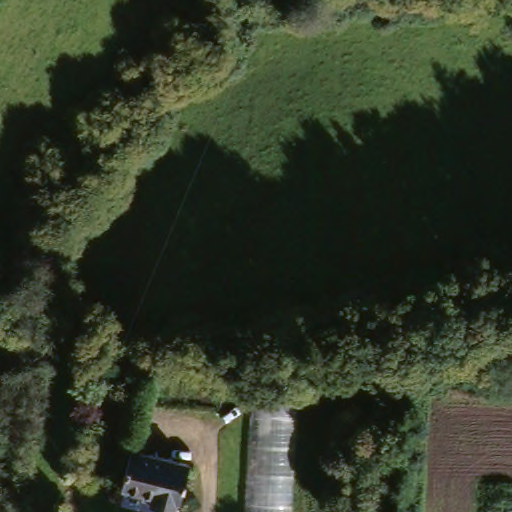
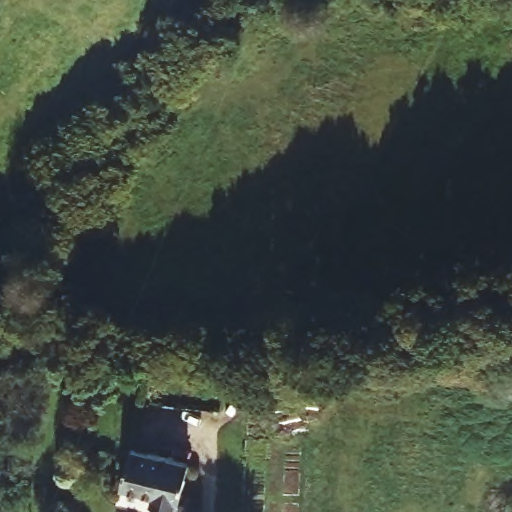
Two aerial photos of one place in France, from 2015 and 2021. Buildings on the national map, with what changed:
demolished [(298,389),(287,512),(239,512),(251,388),(298,389)]
unchanged [(186,467),(176,512),(167,512),(151,508),(151,500),(120,488),(131,453),(186,467)]

